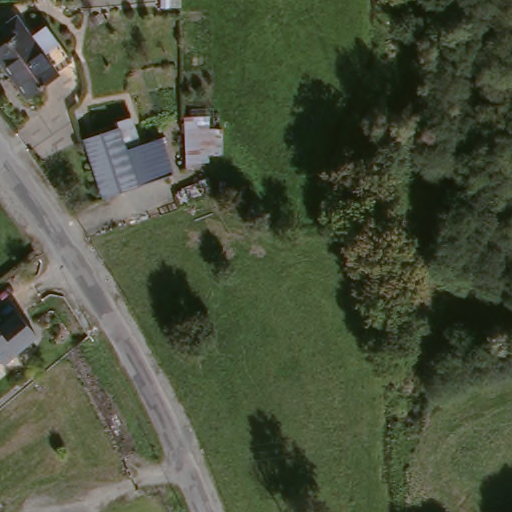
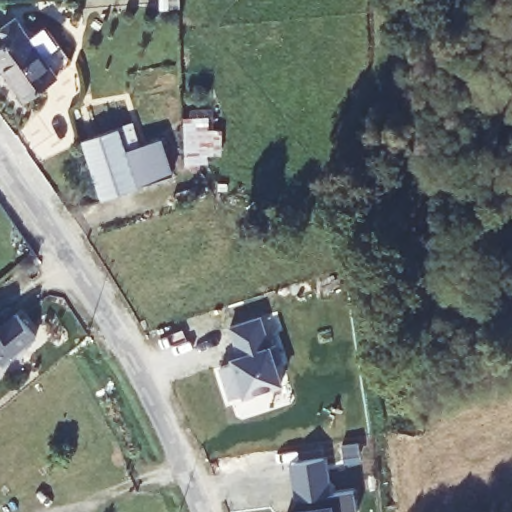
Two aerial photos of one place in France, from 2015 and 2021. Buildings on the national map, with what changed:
unchanged [(0,54),(0,49),(15,39),(6,26),(21,16),(30,28),(38,40),(43,36),(39,31),(50,25),(63,43),(77,62),(62,72),(62,75),(31,97),(14,74),(0,54)]
unchanged [(128,129),(136,155),(158,149),(169,182),(132,192),(94,202),(79,141),(113,133),(128,129)]
new [(271,346),(277,344),(283,361),(276,362),(283,383),(246,395),(245,392),(230,398),(220,367),(235,362),(234,357),(240,356),(229,325),(261,316),(271,346)]
unchanged [(0,334),(18,318),(38,340),(20,356),(19,359),(6,369),(3,365),(0,368),(0,333),(0,334)]
new [(292,467),(323,462),(329,498),(353,494),(356,512),(299,512),(292,467)]

